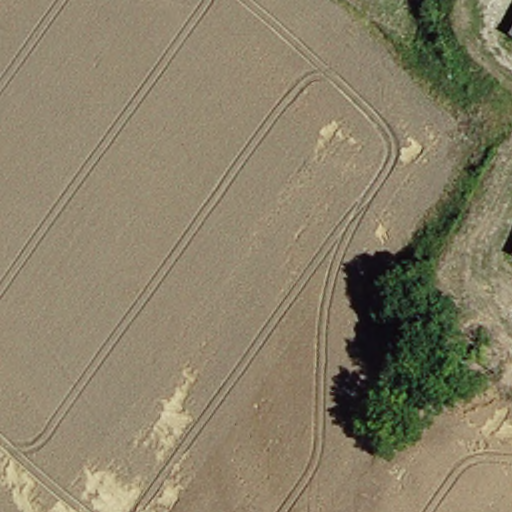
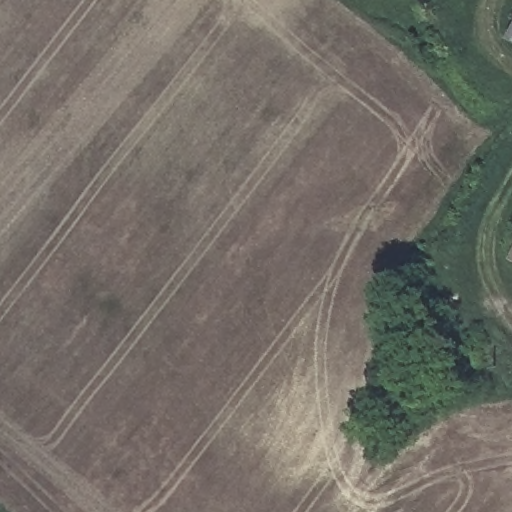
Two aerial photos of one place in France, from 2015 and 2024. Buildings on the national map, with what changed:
unchanged [(508,43),(512,36),(512,45),(508,43)]
unchanged [(503,258),(512,241),(512,263),(503,258)]

